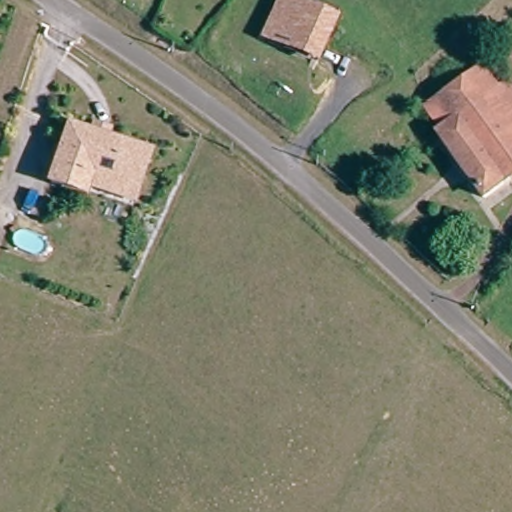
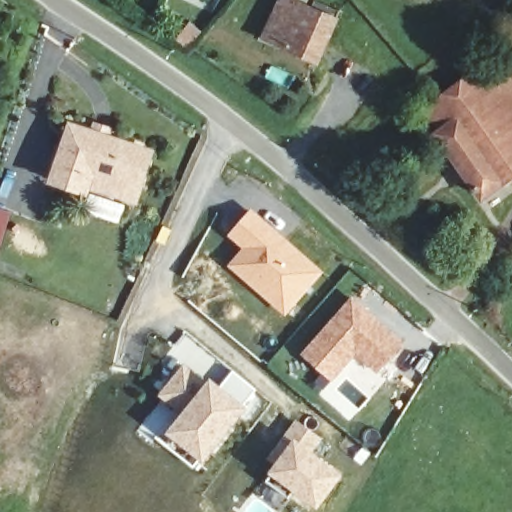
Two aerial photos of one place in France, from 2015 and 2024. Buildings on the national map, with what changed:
unchanged [(312,60),(285,49),(264,40),(273,20),(282,0),(311,12),(315,3),(339,13),(329,38),(318,63),(312,60)]
unchanged [(502,88),(512,81),(512,179),(487,197),(437,135),(445,129),(431,111),(485,70),(486,70),(502,88)]
unchanged [(78,185),(72,194),(40,183),(61,127),(83,135),(88,124),(105,130),(102,140),(135,153),(124,184),(119,199),(78,185)]
new [(241,248),(226,235),(251,207),(324,271),(284,316),(226,265),(241,248)]
new [(8,219),(0,246),(0,217),(8,219)]
new [(353,293),(406,341),(377,375),(354,357),(331,382),(299,353),(353,293)]
new [(183,363),(205,382),(179,415),(157,395),(183,363)]
new [(205,382),(210,377),(219,384),(232,369),(257,389),(245,405),(248,408),(225,440),(203,465),(164,432),(179,415),(205,382)]
new [(289,441),(282,436),(296,418),(323,439),(314,451),(343,473),(317,510),(267,472),(289,441)]

